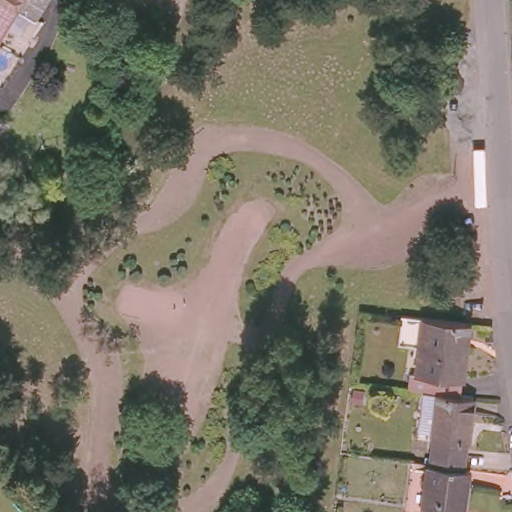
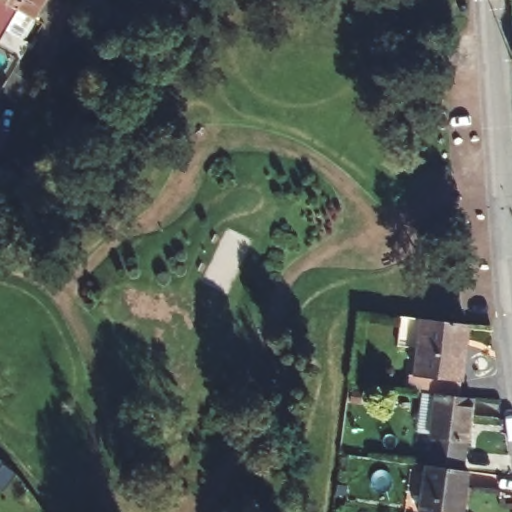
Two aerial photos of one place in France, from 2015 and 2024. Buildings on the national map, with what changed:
unchanged [(45,0),(34,17),(17,6),(15,7),(3,27),(0,25),(0,0),(45,0)]
unchanged [(455,395),(435,393),(422,391),(424,377),(413,375),(420,318),(463,323),(455,395)]
unchanged [(422,391),(435,393),(455,395),(470,397),(464,441),(460,441),(456,468),(444,467),(423,465),(427,432),(412,430),(417,391),(422,391)]
unchanged [(423,465),(444,467),(456,468),(463,470),(458,512),(417,512),(422,465),(423,465)]

